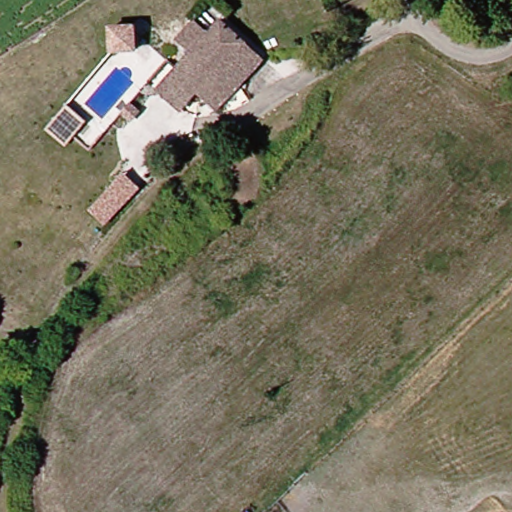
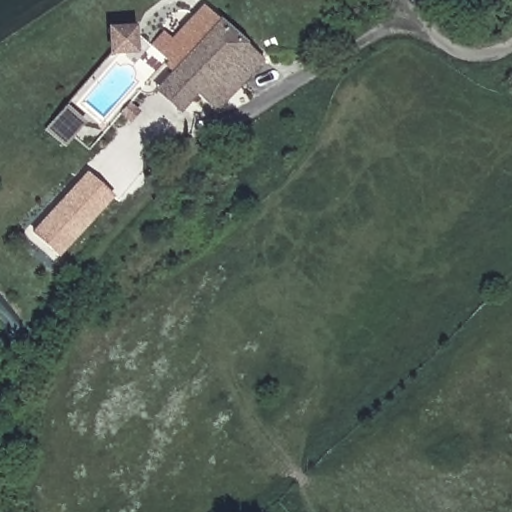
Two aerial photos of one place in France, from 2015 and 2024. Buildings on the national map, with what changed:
new [(207,34),(192,21),(173,42),(188,55),(176,69),(150,44),(162,30),(170,37),(201,4),(218,22),(207,34)]
unchanged [(155,93),(171,75),(188,55),(173,42),(192,21),(207,34),(218,22),(263,62),(216,114),(194,96),(177,113),(155,93)]
unchanged [(102,35),(120,34),(122,57),(105,59),(102,35)]
new [(61,256),(34,231),(89,171),(116,195),(61,256)]
demolished [(117,213),(99,235),(82,221),(100,199),(117,213)]

